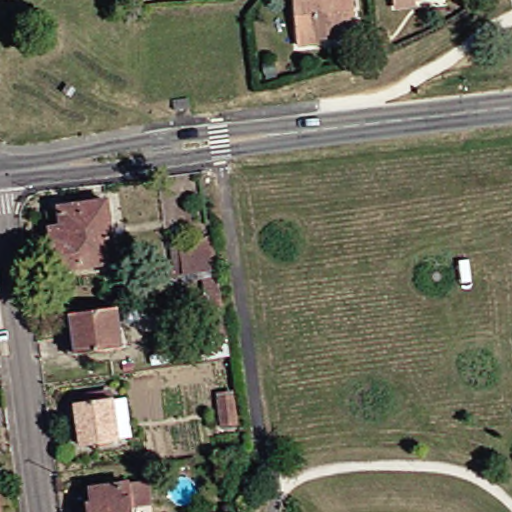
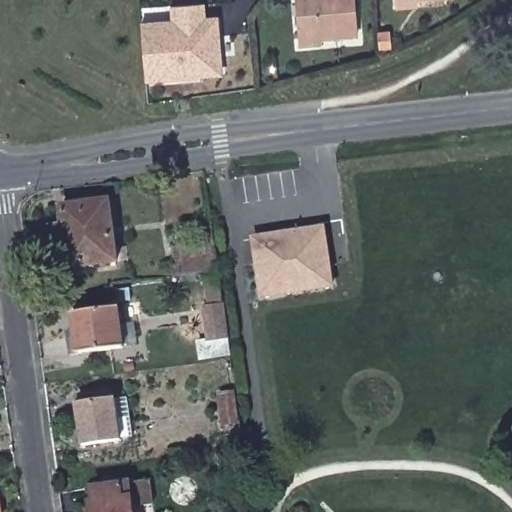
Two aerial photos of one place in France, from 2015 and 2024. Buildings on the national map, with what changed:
demolished [(0,38),(0,0),(2,0),(10,37),(0,38)]
unchanged [(324,38),(325,43),(298,45),(296,0),(357,0),(358,24),(358,36),(324,38)]
unchanged [(417,4),(417,10),(398,12),(397,0),(455,0),(455,1),(417,4)]
new [(173,10),(205,7),(205,22),(218,21),(219,29),(222,73),(202,75),(201,68),(175,69),(176,81),(146,83),(142,28),(175,25),(173,10)]
demolished [(6,120),(0,121),(0,86),(1,86),(0,79),(56,73),(61,117),(6,120)]
unchanged [(186,112),(171,114),(171,103),(186,102),(186,112)]
unchanged [(50,260),(45,229),(44,215),(55,214),(54,195),(102,189),(110,253),(50,260)]
new [(322,228),(323,237),(331,285),(262,297),(253,240),(314,230),(322,228)]
unchanged [(186,274),(182,246),(211,243),(216,270),(186,274)]
unchanged [(205,339),(200,307),(206,306),(203,280),(217,279),(220,305),(225,336),(205,339)]
unchanged [(72,327),(71,313),(116,308),(120,347),(68,354),(65,338),(65,328),(72,327)]
unchanged [(221,424),(217,399),(231,398),(235,422),(221,424)]
unchanged [(80,446),(75,404),(112,399),(113,401),(122,400),(127,438),(117,440),(117,442),(80,446)]
unchanged [(90,510),(89,503),(92,503),(91,489),(127,483),(131,512),(83,512),(82,511),(90,510)]

